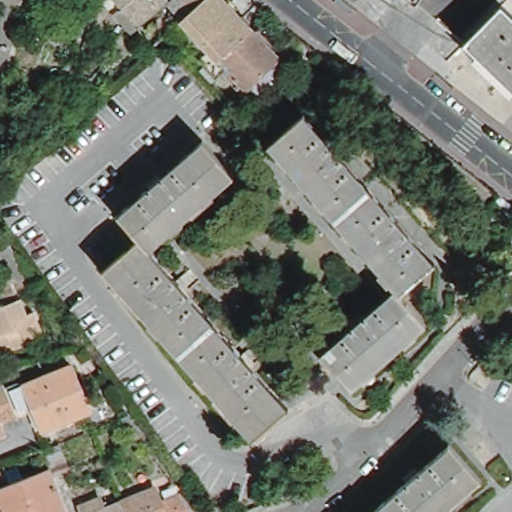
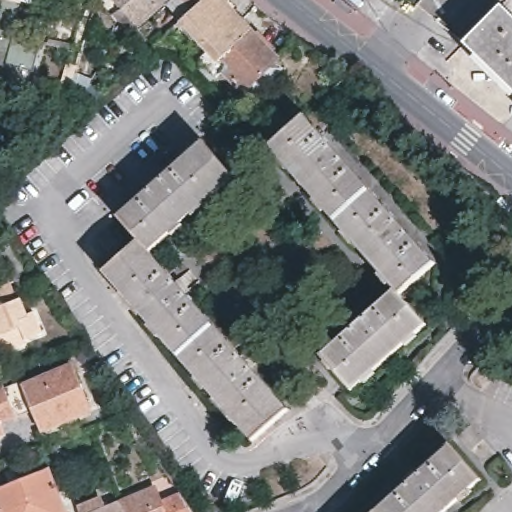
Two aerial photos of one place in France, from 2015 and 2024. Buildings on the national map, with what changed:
unchanged [(17,0),(20,1),(0,70),(0,0),(17,0)]
unchanged [(119,0),(165,0),(139,22),(119,0)]
unchanged [(285,64),(260,86),(253,78),(248,83),(228,61),(220,68),(204,52),(212,44),(185,14),(188,11),(178,0),(233,0),(283,51),(278,57),(285,64)]
unchanged [(502,6),(512,15),(512,89),(464,43),(502,6)]
unchanged [(37,77),(62,85),(64,79),(72,50),(80,52),(72,81),(80,83),(78,93),(70,90),(68,98),(35,90),(37,77)]
unchanged [(353,384),(321,349),(395,283),(269,140),(302,110),(434,259),(402,289),(427,317),(353,384)]
unchanged [(254,434),(104,265),(138,234),(117,211),(202,137),(232,173),(149,247),(289,404),(254,434)]
unchanged [(32,275),(0,288),(0,241),(7,238),(32,275)]
unchanged [(45,333),(0,356),(0,298),(20,287),(45,333)]
unchanged [(22,379),(23,382),(69,362),(90,410),(43,432),(32,406),(16,413),(5,388),(22,379)]
unchanged [(5,388),(16,413),(18,417),(2,423),(7,434),(0,437),(0,386),(3,384),(5,388)]
unchanged [(473,449),(462,436),(473,425),(485,439),(473,449)]
unchanged [(0,494),(0,492),(55,468),(47,450),(60,445),(70,467),(57,473),(73,512),(8,512),(0,494)]
unchanged [(450,512),(380,512),(456,445),(486,480),(450,512)]
unchanged [(4,469),(10,482),(0,486),(0,471),(4,469)]
unchanged [(125,504),(160,489),(167,503),(187,495),(199,512),(129,512),(125,504)]
unchanged [(87,505),(107,496),(112,509),(114,508),(113,503),(118,500),(121,506),(125,504),(129,512),(90,512),(87,505)]

